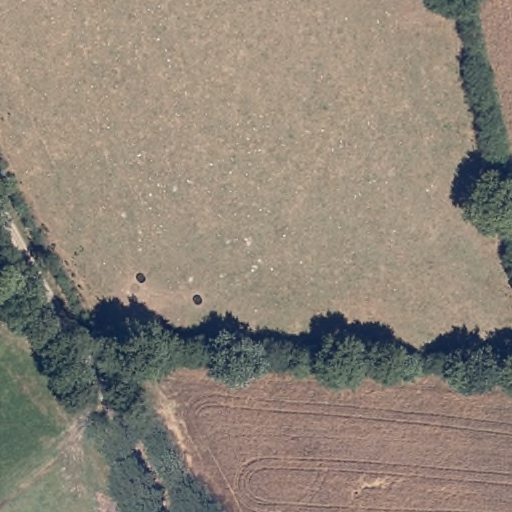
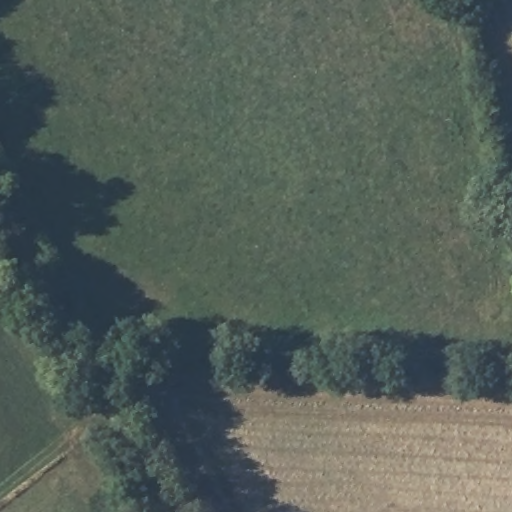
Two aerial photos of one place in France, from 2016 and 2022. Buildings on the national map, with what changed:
[]

